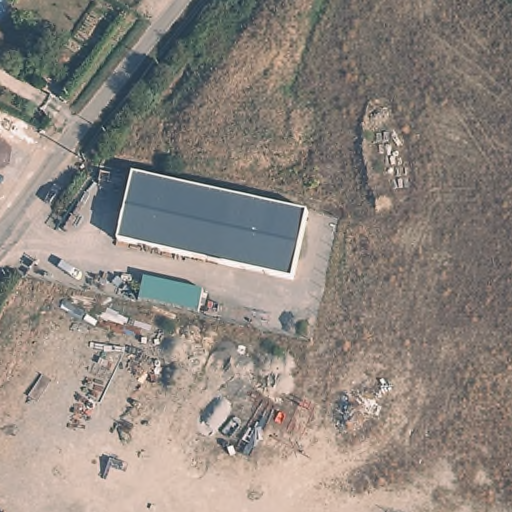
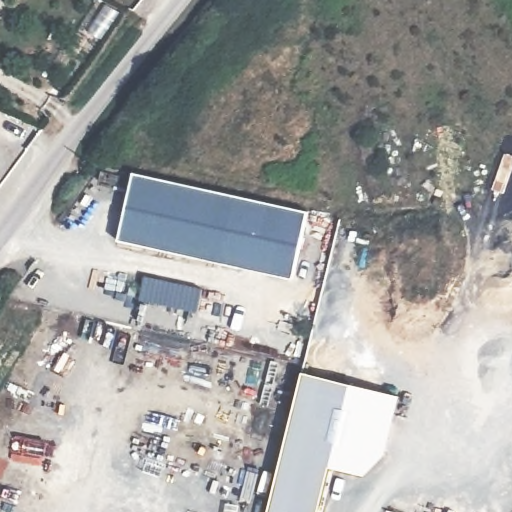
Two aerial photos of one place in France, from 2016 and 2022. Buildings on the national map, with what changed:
unchanged [(150,176),(308,211),(293,279),(118,241),(133,173),(150,176)]
new [(300,376),(397,399),(380,468),(362,479),(328,470),(318,512),(267,512),(300,376)]

